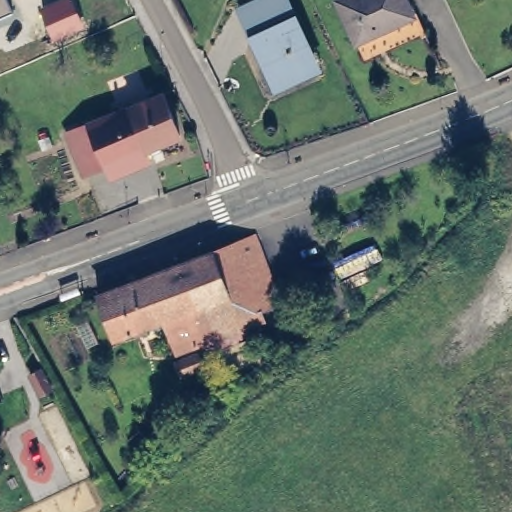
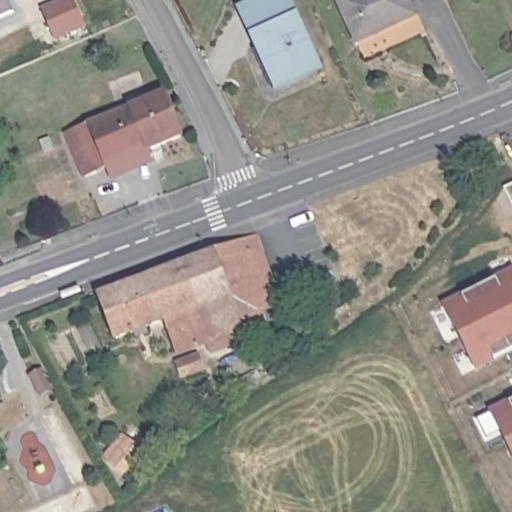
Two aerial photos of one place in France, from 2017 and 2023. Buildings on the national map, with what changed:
unchanged [(0,17),(0,0),(8,0),(12,12),(0,17)]
unchanged [(53,40),(40,7),(57,0),(73,0),(85,27),(53,40)]
unchanged [(290,0),(319,61),(277,80),(257,35),(248,17),(245,10),(265,0),(290,0)]
unchanged [(368,50),(345,0),(414,0),(425,23),(368,50)]
unchanged [(150,155),(147,150),(82,176),(64,133),(159,94),(177,137),(157,145),(159,150),(150,155)]
unchanged [(114,333),(97,290),(235,239),(250,234),(270,290),(256,293),(244,298),(250,318),(176,345),(164,316),(143,323),(145,329),(135,332),(133,327),(114,333)]
new [(512,270),(512,353),(482,365),(452,295),(512,270)]
unchanged [(197,355),(201,368),(180,375),(176,363),(197,355)]
unchanged [(37,371),(49,390),(38,395),(28,376),(37,371)]
new [(512,395),(512,447),(491,405),(512,395)]

